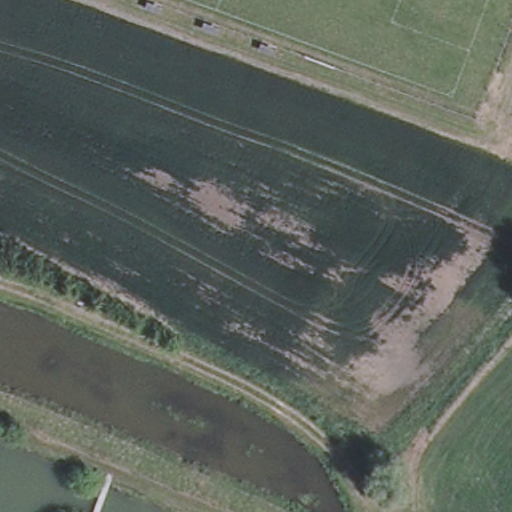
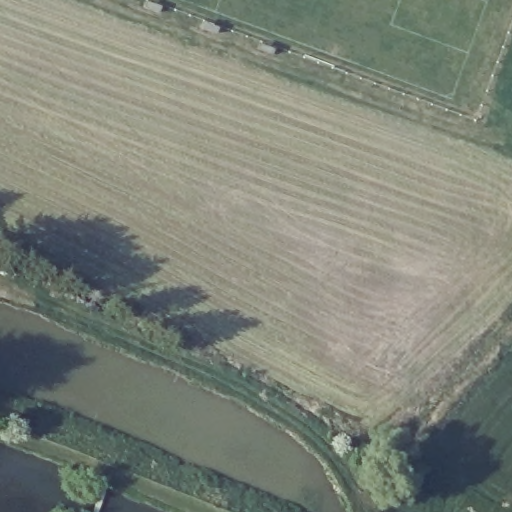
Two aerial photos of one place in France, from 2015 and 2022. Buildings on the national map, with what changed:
[]

